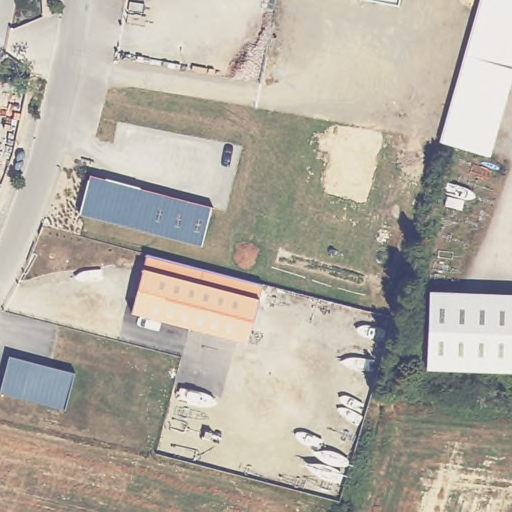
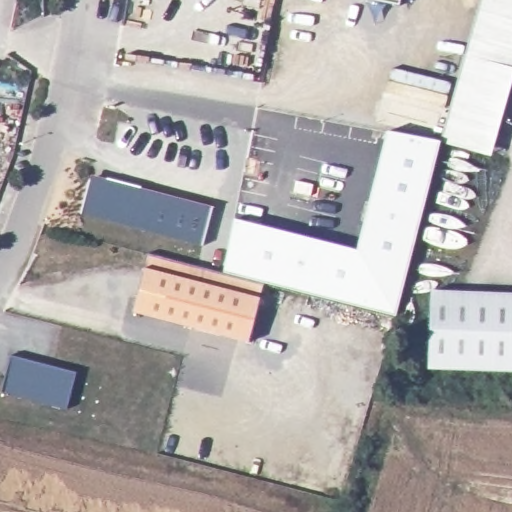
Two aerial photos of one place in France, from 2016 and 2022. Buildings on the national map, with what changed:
unchanged [(395,5),(367,0),(396,0),(395,5)]
unchanged [(512,83),(490,159),(438,144),(479,0),(512,0),(512,83)]
new [(232,218),(355,248),(385,130),(440,139),(438,144),(441,145),(395,315),(261,285),(220,275),(232,218)]
unchanged [(79,215),(89,173),(209,205),(200,246),(79,215)]
unchanged [(145,257),(261,285),(246,340),(130,311),(145,257)]
unchanged [(512,371),(428,375),(426,299),(512,295),(512,371)]
unchanged [(75,371),(62,413),(0,396),(0,386),(10,356),(75,371)]

